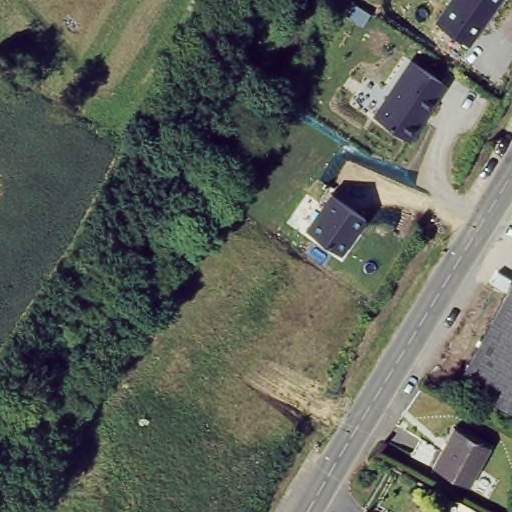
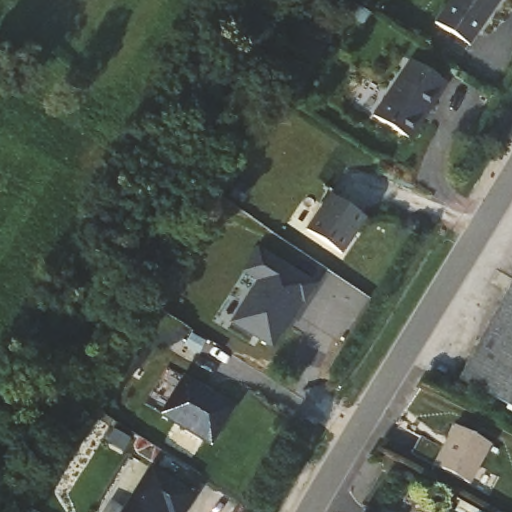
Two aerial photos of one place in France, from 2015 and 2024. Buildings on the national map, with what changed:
unchanged [(451,0),(501,0),(469,45),(435,23),(451,0)]
unchanged [(409,59),(447,84),(410,141),(373,115),(409,59)]
unchanged [(330,194),(366,218),(340,254),(306,228),(330,194)]
new [(312,285),(302,301),(300,300),(290,314),(288,313),(282,323),(283,325),(270,346),(232,322),(258,280),(243,270),(257,249),(312,285)]
unchanged [(453,375),(512,268),(512,408),(453,375)]
new [(204,389),(202,393),(207,396),(210,393),(232,407),(210,444),(161,414),(183,377),(204,389)]
unchanged [(454,415),(490,434),(468,474),(432,455),(410,444),(420,426),(442,438),(454,415)]
new [(194,496),(184,512),(122,512),(150,468),(194,496)]

